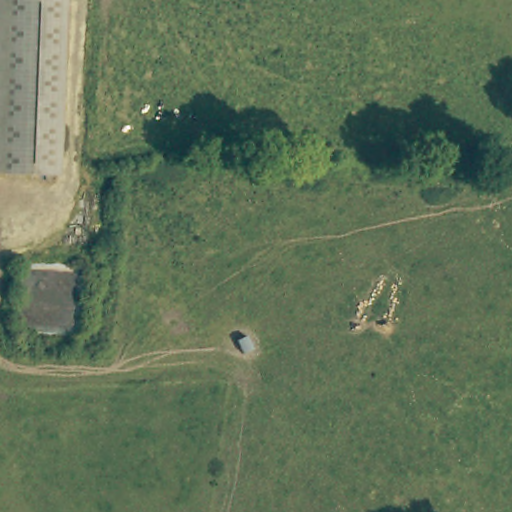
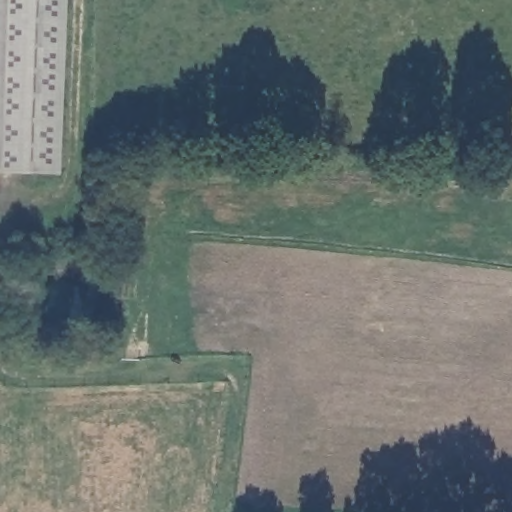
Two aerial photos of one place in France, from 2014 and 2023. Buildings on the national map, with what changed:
unchanged [(52,184),(0,179),(0,0),(27,0),(69,3),(52,184)]

